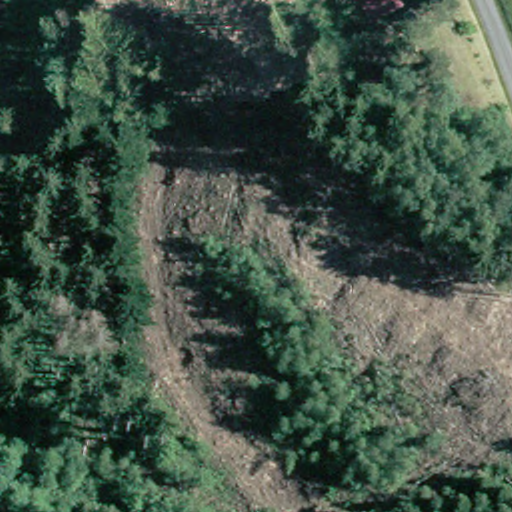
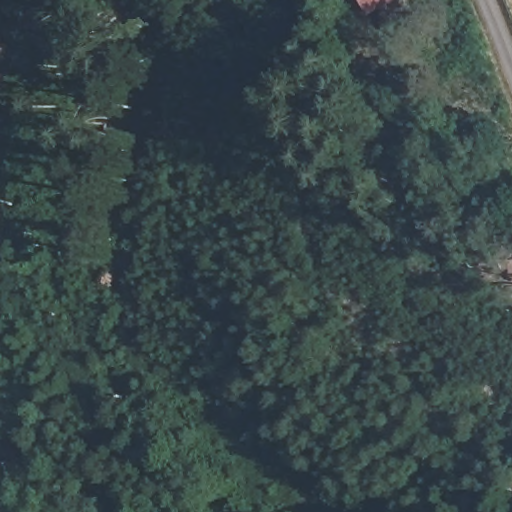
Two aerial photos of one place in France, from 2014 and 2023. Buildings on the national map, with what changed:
unchanged [(388,0),(385,1),(364,12),(358,0),(388,0)]

